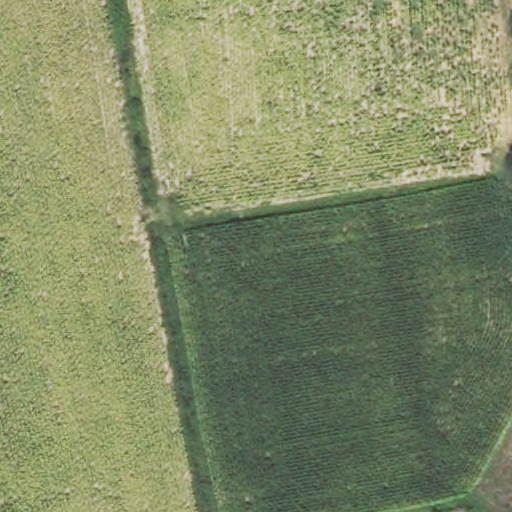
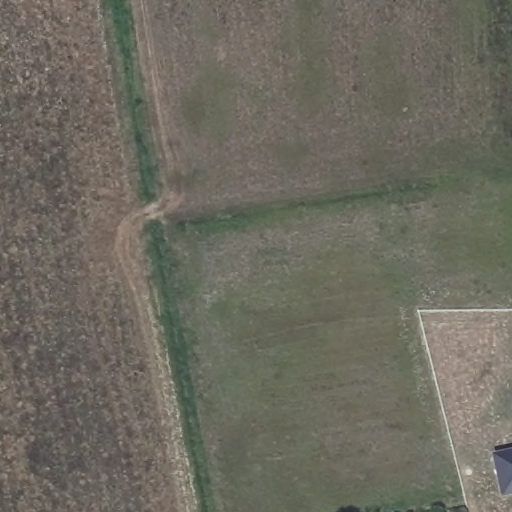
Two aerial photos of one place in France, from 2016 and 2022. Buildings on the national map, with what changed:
new [(504,492),(496,453),(512,450),(512,491),(504,492)]

